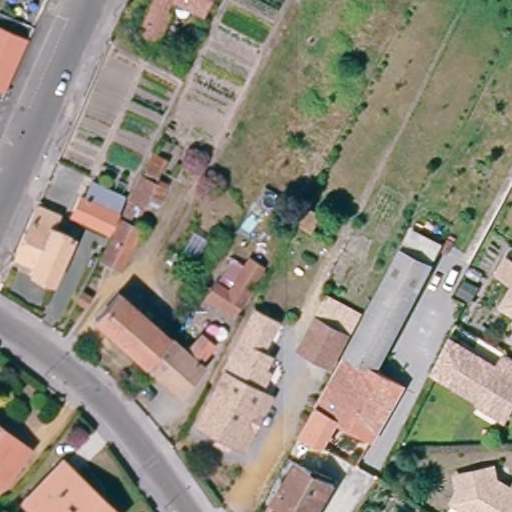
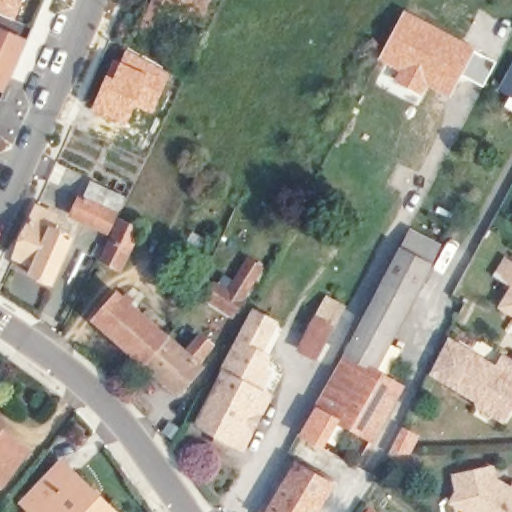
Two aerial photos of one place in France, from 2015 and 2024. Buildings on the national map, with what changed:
new [(0,13),(0,0),(23,0),(15,19),(0,13)]
unchanged [(165,3),(159,16),(163,18),(152,42),(135,34),(151,0),(207,0),(199,19),(165,3)]
new [(482,88),(461,76),(449,99),(428,86),(421,98),(391,81),(396,71),(376,59),(404,9),(475,48),(497,61),(482,88)]
unchanged [(4,92),(0,90),(0,26),(27,36),(4,92)]
new [(106,72),(111,73),(117,62),(126,47),(172,71),(152,115),(134,106),(125,126),(89,109),(106,72)]
new [(512,61),(512,111),(503,106),(508,96),(497,90),(512,61)]
demolished [(138,177),(154,184),(145,199),(141,205),(128,198),(138,177)]
unchanged [(105,232),(71,215),(80,198),(81,199),(90,182),(122,198),(105,232)]
unchanged [(35,207),(56,216),(50,229),(68,238),(49,284),(30,275),(34,265),(13,257),(35,207)]
unchanged [(131,214),(126,224),(139,230),(121,269),(102,260),(125,212),(131,214)]
unchanged [(395,250),(424,265),(368,371),(357,364),(358,363),(340,354),(395,250)]
unchanged [(229,317),(205,302),(214,289),(226,297),(246,264),(257,272),(229,317)]
unchanged [(497,305),(512,280),(512,314),(497,305)]
unchanged [(87,320),(111,293),(117,298),(120,295),(127,301),(124,305),(160,337),(137,364),(87,320)]
unchanged [(324,365),(295,349),(321,299),(350,314),(324,365)]
unchanged [(242,451),(228,444),(192,426),(227,358),(226,357),(248,313),(266,321),(243,366),(247,367),(239,383),(255,391),(269,398),(242,451)]
unchanged [(160,337),(179,353),(192,338),(203,348),(191,362),(195,366),(172,394),(137,364),(160,337)]
unchanged [(496,410),(430,373),(447,339),(497,369),(505,354),(512,358),(512,399),(507,407),(503,414),(496,410)]
unchanged [(331,374),(340,354),(358,363),(357,364),(368,371),(396,386),(366,440),(330,420),(315,447),(296,435),(331,374)]
unchanged [(1,484),(0,482),(0,430),(26,450),(1,484)]
unchanged [(295,466),(331,487),(316,512),(267,512),(295,466)]
unchanged [(63,467),(112,512),(32,512),(26,506),(63,467)]
unchanged [(487,467),(491,484),(496,483),(506,489),(510,484),(512,485),(512,512),(466,512),(449,503),(454,494),(449,476),(487,467)]
unchanged [(374,512),(357,512),(363,504),(374,512)]

